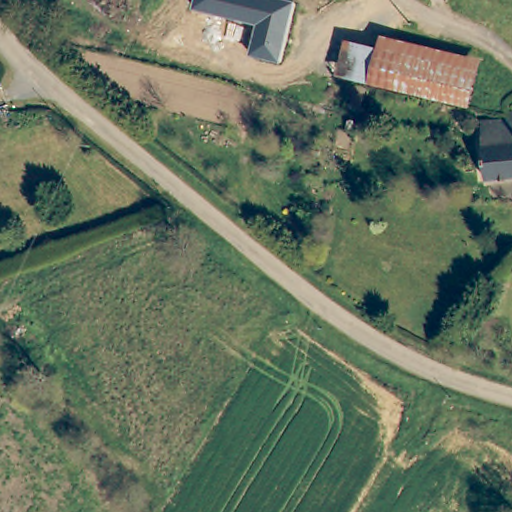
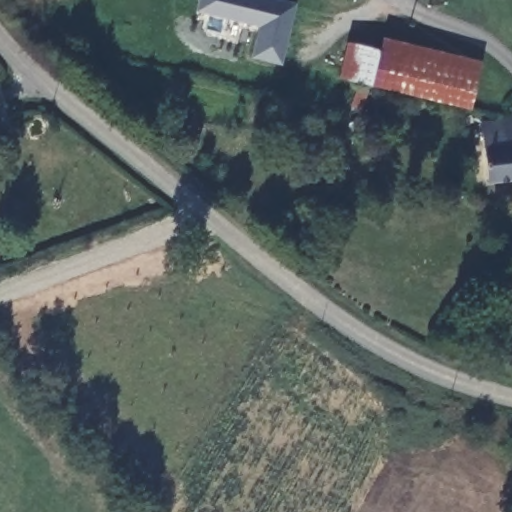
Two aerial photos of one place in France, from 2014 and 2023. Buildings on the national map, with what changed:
unchanged [(289,0),(295,1),(280,64),(250,55),(257,24),(195,8),(197,0),(289,0)]
unchanged [(424,94),(400,89),(379,84),(345,75),(353,44),(387,51),(409,57),(432,63),(478,73),(472,105),(424,94)]
unchanged [(365,114),(351,110),(357,88),(359,84),(372,86),(365,114)]
unchanged [(509,113),(512,112),(512,120),(511,119),(509,113)]
unchanged [(512,179),(488,181),(482,123),(512,120),(512,179)]

